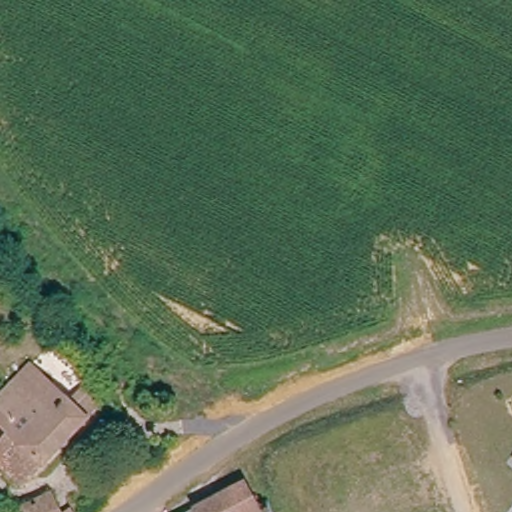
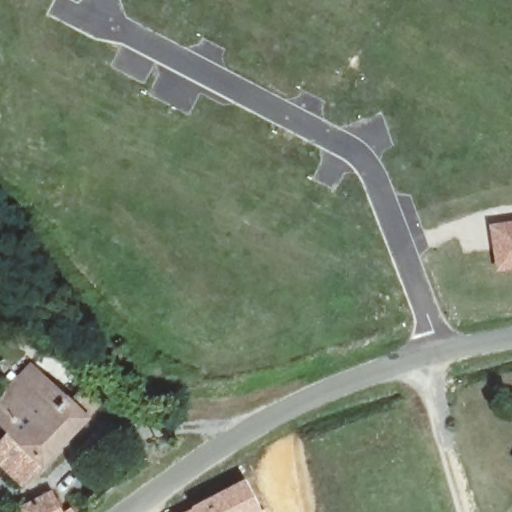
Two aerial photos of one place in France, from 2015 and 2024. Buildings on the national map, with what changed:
new [(512,271),(497,273),(489,225),(512,222),(512,271)]
unchanged [(34,365),(72,401),(85,388),(100,402),(30,488),(0,462),(0,451),(15,434),(0,420),(0,401),(34,365)]
unchanged [(246,484),(261,512),(194,512),(246,484)]
unchanged [(21,505),(55,491),(63,512),(23,512),(21,505)]
unchanged [(78,508),(79,512),(70,512),(78,508)]

